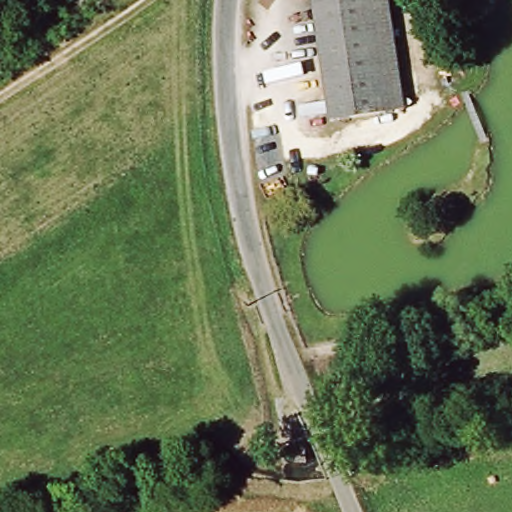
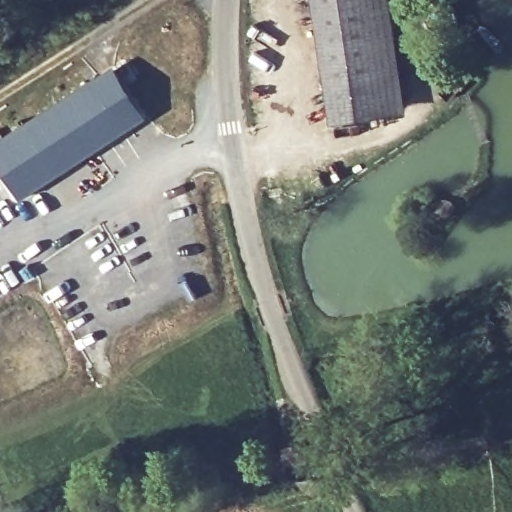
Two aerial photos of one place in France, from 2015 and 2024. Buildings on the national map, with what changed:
unchanged [(341,120),(320,0),(376,0),(395,111),(341,120)]
unchanged [(411,108),(395,111),(376,0),(393,0),(411,108)]
new [(50,105),(112,66),(146,116),(23,196),(0,165),(0,135),(50,105)]

